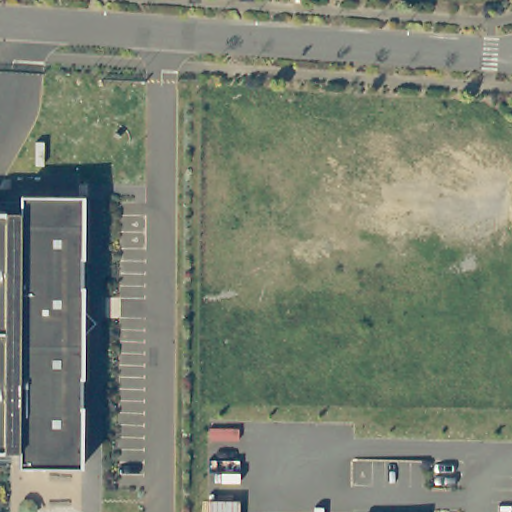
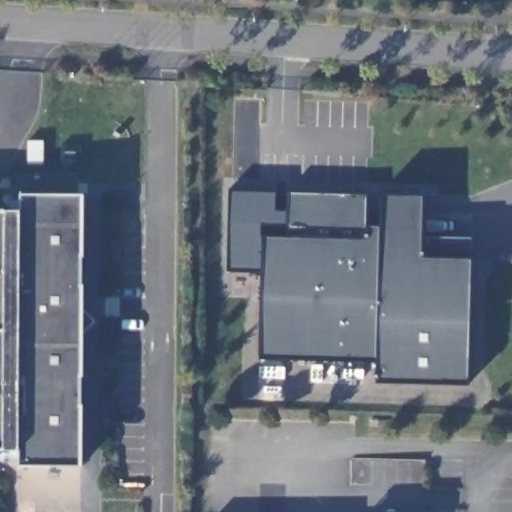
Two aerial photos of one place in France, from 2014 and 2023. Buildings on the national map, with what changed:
new [(469,384),(374,382),(375,359),(260,357),(263,237),(286,237),(287,193),(366,194),(366,224),(378,224),(380,194),(421,196),(420,234),(472,237),(469,384)]
unchanged [(19,209),(19,194),(82,194),(80,464),(17,464),(17,449),(0,449),(0,209),(19,209)]

